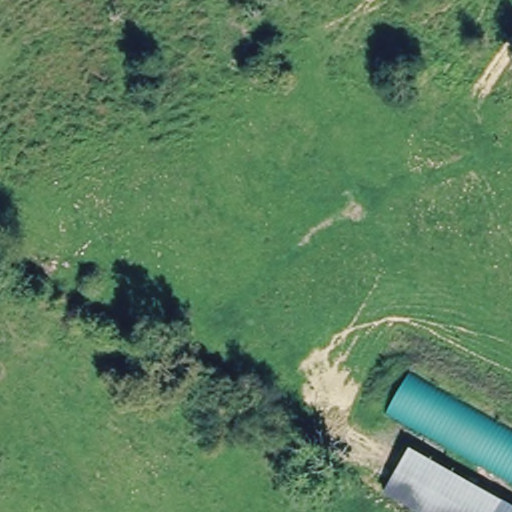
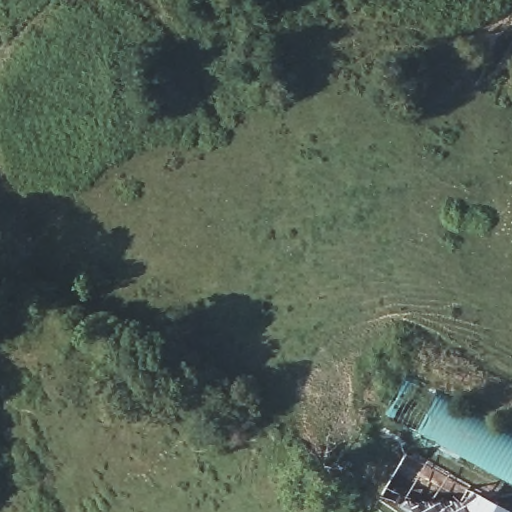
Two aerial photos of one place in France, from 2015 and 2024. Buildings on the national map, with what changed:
unchanged [(409,373),(512,429),(512,481),(389,408),(409,373)]
unchanged [(512,512),(415,512),(381,493),(407,446),(512,504),(512,512)]

